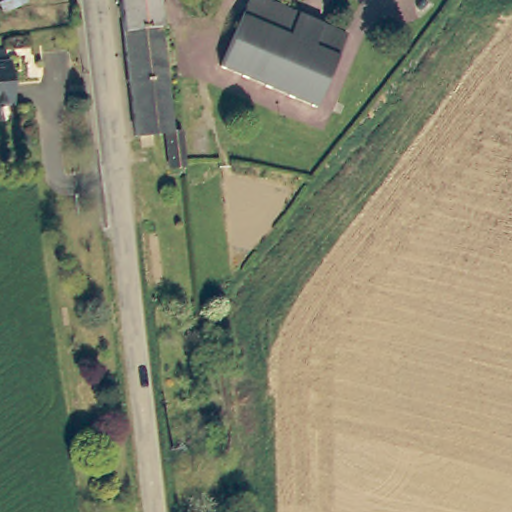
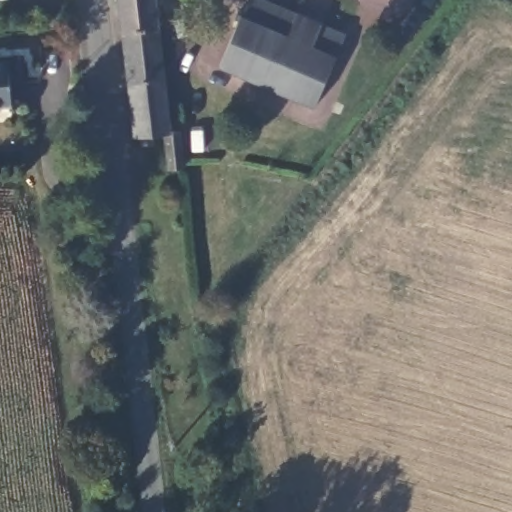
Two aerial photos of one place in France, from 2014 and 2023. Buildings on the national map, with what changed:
unchanged [(119,0),(156,0),(159,23),(122,27),(119,0)]
unchanged [(314,101),(219,63),(244,0),(273,0),(343,30),(314,101)]
unchanged [(172,131),(179,130),(184,163),(168,165),(164,131),(135,135),(122,27),(159,23),(172,131)]
unchanged [(0,105),(0,59),(7,59),(10,104),(0,105)]

